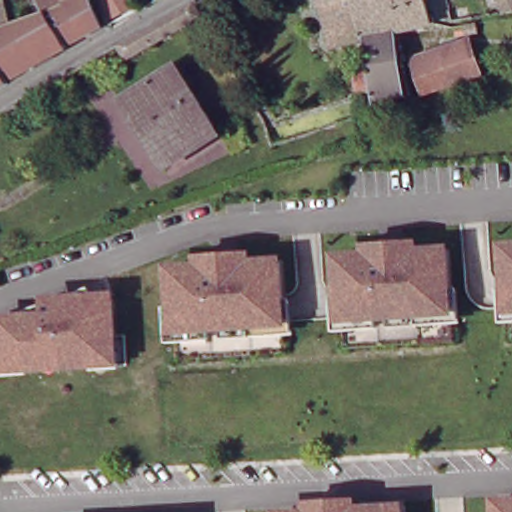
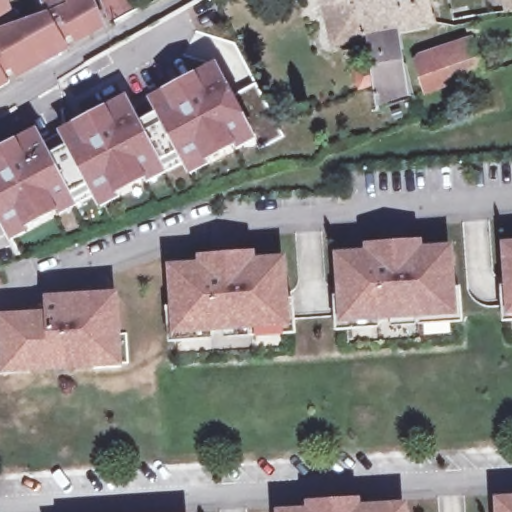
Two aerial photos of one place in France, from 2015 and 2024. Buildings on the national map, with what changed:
unchanged [(0,90),(0,33),(15,27),(44,16),(53,13),(48,0),(86,0),(99,0),(109,26),(83,38),(84,40),(81,42),(78,35),(69,40),(73,46),(20,75),(17,68),(9,72),(14,82),(0,90)]
unchanged [(383,68),(381,60),(378,36),(343,43),(333,0),(369,0),(435,0),(436,2),(439,14),(444,14),(447,22),(441,24),(407,30),(416,94),(388,103),(388,102),(386,92),(385,86),(384,83),(368,89),(364,71),(383,68)]
unchanged [(505,10),(503,0),(512,0),(512,9),(505,10)]
unchanged [(0,3),(8,1),(15,27),(0,33),(0,3)]
demolished [(143,30),(194,1),(203,15),(151,45),(143,30)]
unchanged [(483,22),(484,32),(473,34),(472,24),(483,22)]
demolished [(139,51),(126,59),(118,45),(131,37),(139,51)]
unchanged [(449,49),(477,39),(489,74),(461,84),(449,49)]
unchanged [(432,94),(420,58),(449,49),(461,84),(432,94)]
new [(49,155),(66,145),(58,130),(126,95),(138,121),(156,111),(149,97),(216,61),(259,139),(238,150),(235,145),(207,160),(209,166),(189,176),(183,164),(168,173),(149,184),(146,177),(118,193),(120,199),(100,209),(91,192),(76,200),(79,207),(59,217),(56,210),(28,226),(29,231),(10,241),(0,221),(0,146),(36,127),(49,155)]
demolished [(122,99),(178,64),(221,132),(166,167),(122,99)]
demolished [(242,121),(252,140),(235,149),(224,130),(242,121)]
unchanged [(366,260),(366,249),(414,245),(414,256),(442,255),(445,255),(446,273),(449,317),(339,322),(335,261),(366,260)]
unchanged [(512,251),(512,313),(511,313),(506,251),(512,251)]
unchanged [(174,272),(203,270),(203,259),(215,258),(251,256),(252,267),(283,265),(287,325),(178,332),(174,272)]
unchanged [(44,372),(44,369),(30,370),(30,373),(1,375),(0,370),(0,324),(24,315),(50,306),(50,309),(63,308),(63,302),(79,296),(93,291),(93,301),(114,300),(114,302),(117,337),(118,354),(121,354),(123,367),(96,369),(96,366),(68,368),(68,371),(49,372),(44,372)]
unchanged [(306,505),(351,502),(351,505),(351,512),(307,512),(306,505)]
unchanged [(509,505),(512,505),(512,512),(505,512),(505,505),(509,505)]
unchanged [(398,511),(398,512),(379,512),(398,511)]

